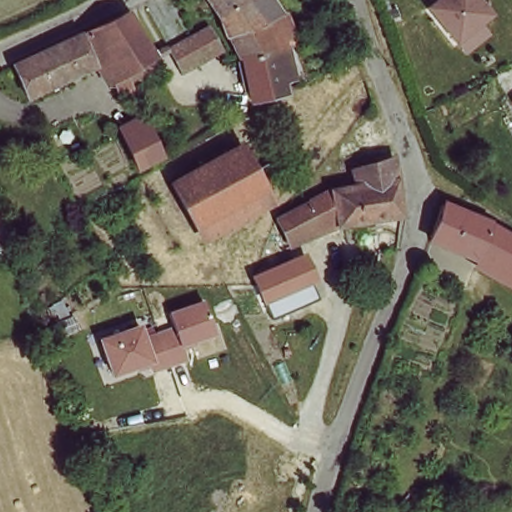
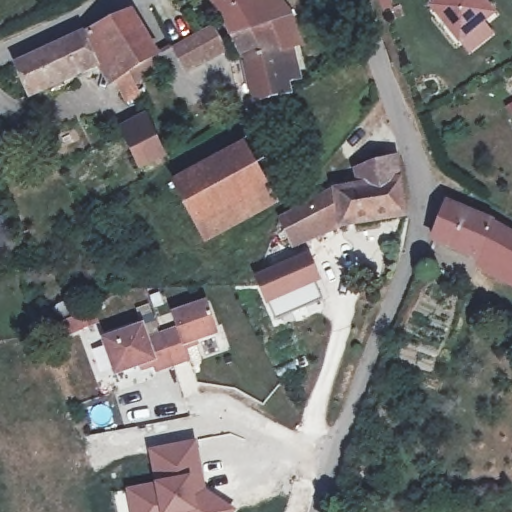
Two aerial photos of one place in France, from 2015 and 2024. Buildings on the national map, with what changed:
unchanged [(290,29),(300,55),(287,58),(244,67),(241,44),(231,45),(223,25),(213,6),(207,0),(262,0),(290,29)]
unchanged [(471,50),(461,39),(433,4),(438,0),(486,0),(495,11),(486,18),(496,29),(471,50)]
unchanged [(181,34),(171,39),(153,9),(164,4),(181,34)]
unchanged [(129,77),(140,100),(128,106),(114,82),(121,78),(113,57),(28,96),(16,69),(128,17),(153,58),(156,61),(156,62),(129,77)]
unchanged [(231,62),(196,82),(179,54),(199,42),(213,34),(231,62)]
unchanged [(280,87),(282,99),(283,104),(253,110),(244,67),(287,58),(292,84),(280,87)]
unchanged [(140,166),(128,137),(153,126),(167,155),(140,166)]
unchanged [(196,225),(180,194),(248,156),(264,185),(196,225)]
unchanged [(313,211),(330,191),(359,183),(356,166),(396,156),(405,214),(346,224),(296,247),(283,223),(313,211)]
unchanged [(264,185),(272,198),(203,238),(196,225),(264,185)]
unchanged [(494,231),(512,243),(512,274),(499,264),(434,242),(444,209),(494,231)]
unchanged [(306,263),(317,286),(274,305),(266,288),(264,282),(306,263)]
unchanged [(218,336),(200,343),(201,348),(188,352),(191,363),(155,375),(151,366),(114,378),(100,338),(144,323),(148,335),(175,327),(170,312),(206,299),(218,336)]
new [(148,448),(198,439),(207,492),(228,490),(230,512),(133,512),(130,489),(155,485),(148,448)]

